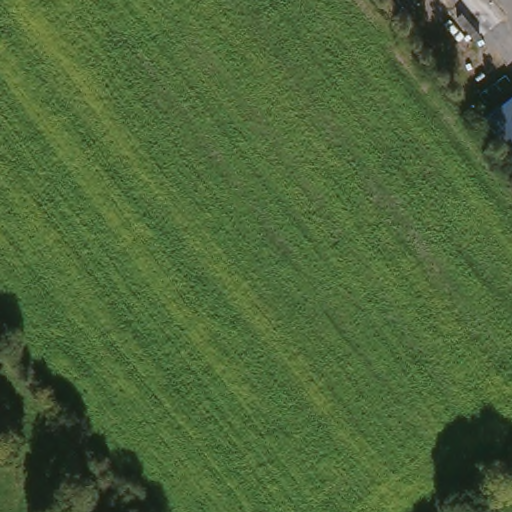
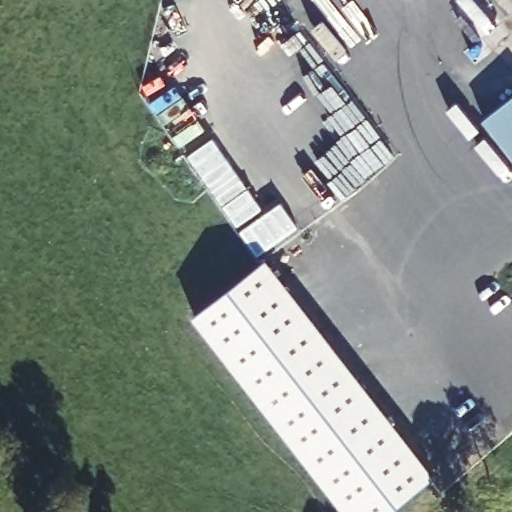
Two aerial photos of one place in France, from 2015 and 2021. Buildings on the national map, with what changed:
unchanged [(497,109),(485,90),(504,75),(512,84),(512,156),(487,116),(497,109)]
new [(264,265),(433,482),(395,512),(343,512),(192,320),(264,265)]

